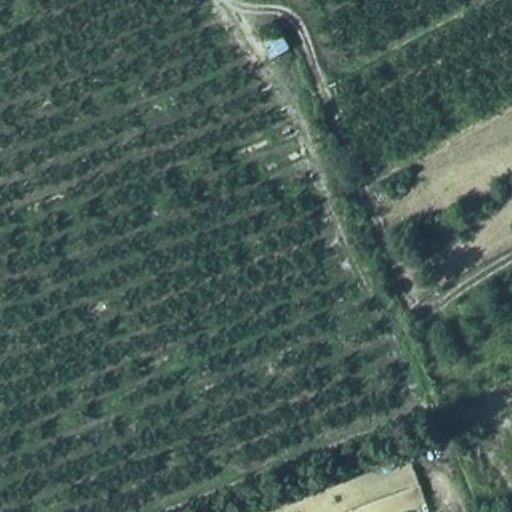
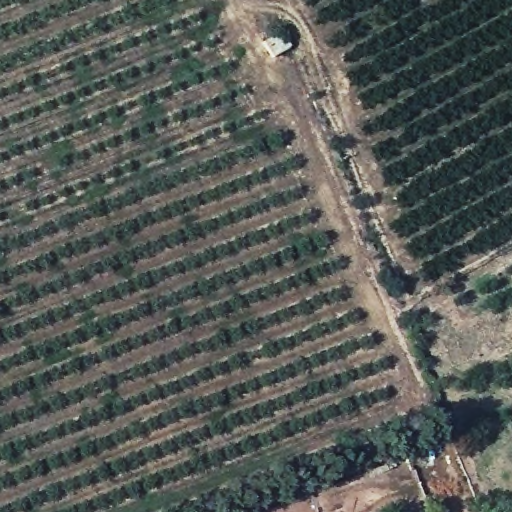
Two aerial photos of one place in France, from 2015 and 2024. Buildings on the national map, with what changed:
unchanged [(281,37),(292,55),(273,63),(265,47),(281,37)]

